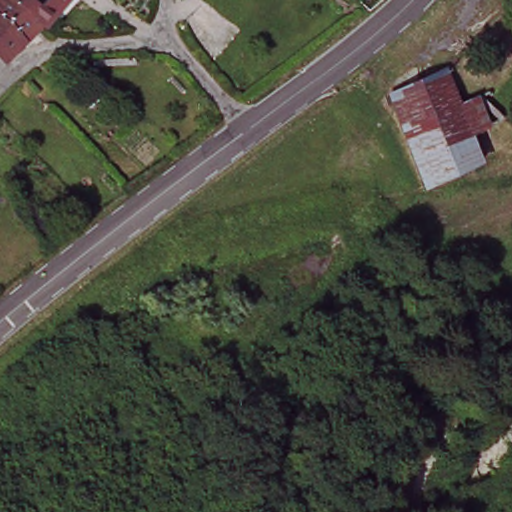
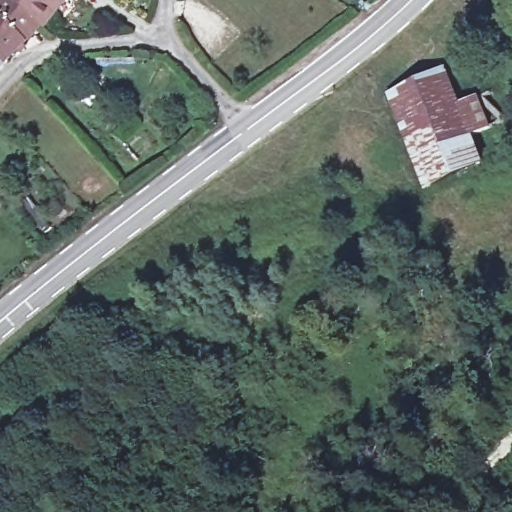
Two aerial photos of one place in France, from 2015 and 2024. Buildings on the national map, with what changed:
unchanged [(7,63),(0,58),(0,3),(2,0),(8,0),(40,25),(22,47),(7,63)]
unchanged [(62,0),(40,25),(8,0),(62,0)]
unchanged [(7,63),(0,70),(0,58),(7,63)]
unchanged [(481,157),(425,184),(382,101),(435,72),(453,101),(461,98),(470,94),(489,119),(473,133),(480,155),(481,157)]

